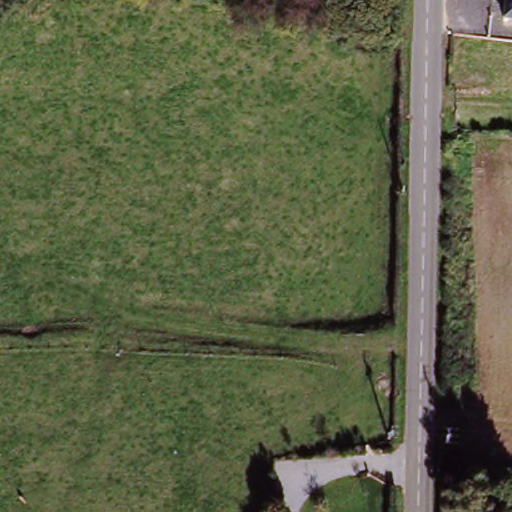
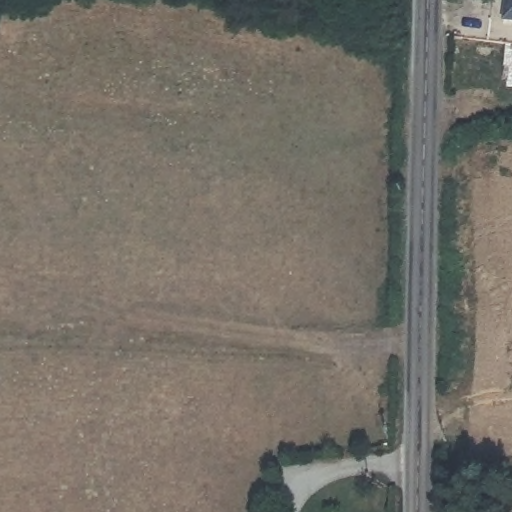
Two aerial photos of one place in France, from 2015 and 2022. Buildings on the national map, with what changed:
unchanged [(511,23),(512,14),(512,23),(511,23)]

